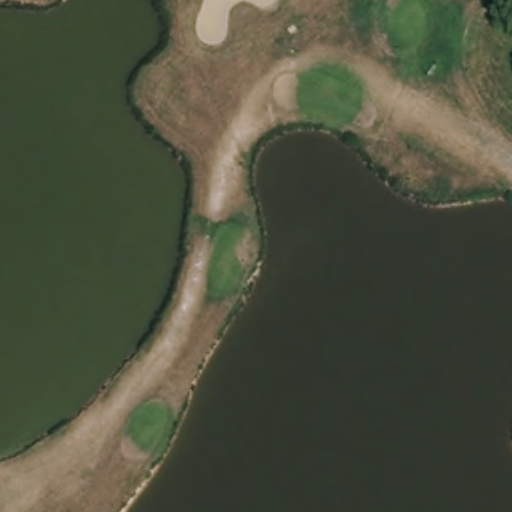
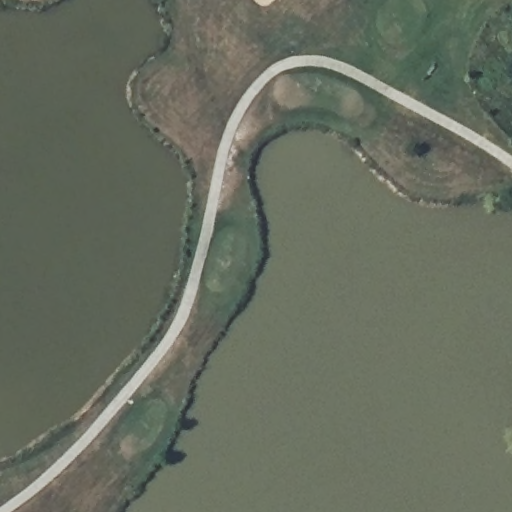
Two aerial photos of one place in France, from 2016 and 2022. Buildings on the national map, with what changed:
[]

